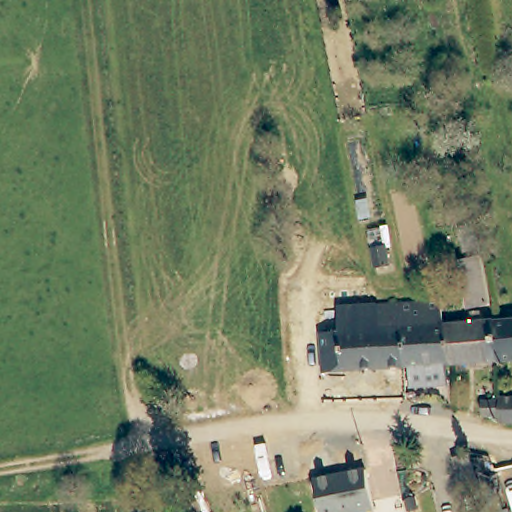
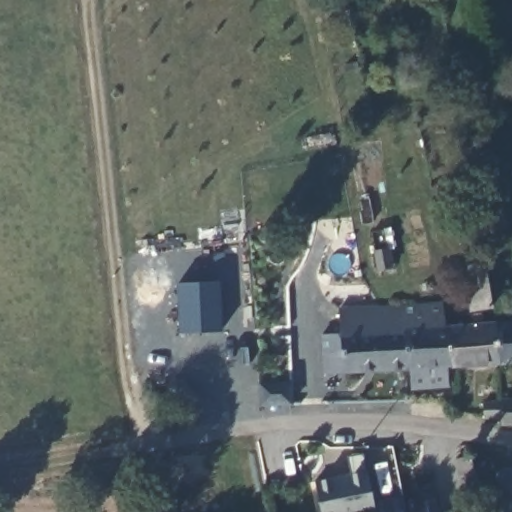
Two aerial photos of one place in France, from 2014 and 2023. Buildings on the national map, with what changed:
unchanged [(486,299),(487,307),(465,310),(457,264),(480,260),(486,299)]
new [(222,331),(180,333),(177,282),(220,281),(222,331)]
unchanged [(409,389),(407,368),(401,369),(397,328),(377,330),(376,306),(403,304),(435,302),(439,326),(446,365),(442,366),(443,386),(409,389)]
unchanged [(467,325),(466,315),(477,315),(478,324),(490,323),(495,361),(446,365),(439,326),(467,325)]
unchanged [(490,323),(512,322),(512,360),(495,361),(490,323)]
unchanged [(322,355),(321,334),(377,330),(397,328),(401,369),(340,374),(338,353),(322,355)]
new [(295,405),(259,408),(257,380),(294,378),(295,405)]
unchanged [(502,426),(502,418),(485,418),(485,404),(501,403),(501,398),(512,398),(512,427),(502,426)]
unchanged [(466,501),(455,461),(470,457),(480,492),(481,498),(466,501)]
unchanged [(322,512),(314,474),(366,464),(368,476),(374,505),(335,512),(322,512)]

